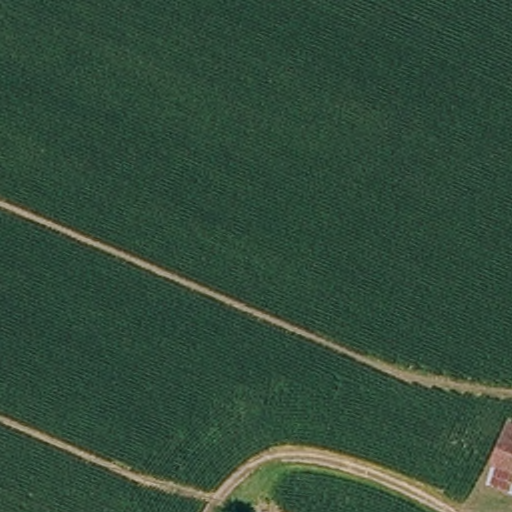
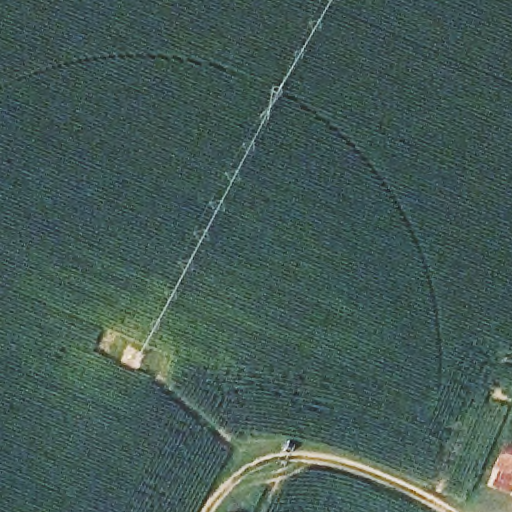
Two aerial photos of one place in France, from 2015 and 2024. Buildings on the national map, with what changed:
unchanged [(512,485),(478,473),(495,434),(512,440),(512,485)]

